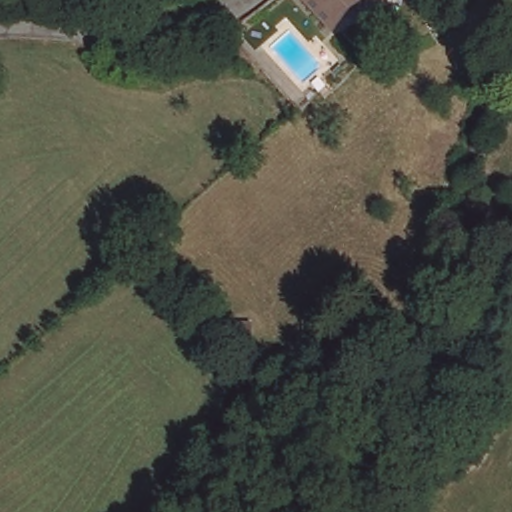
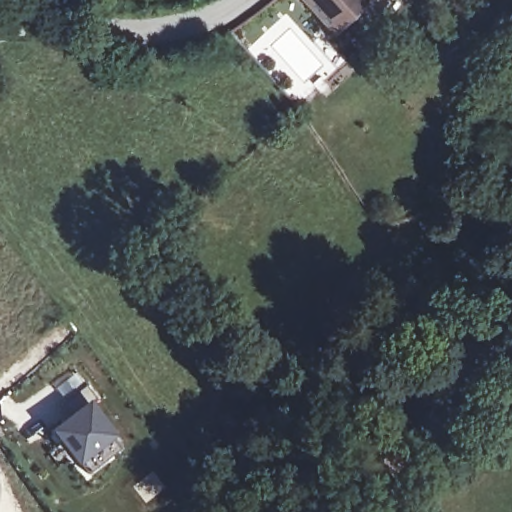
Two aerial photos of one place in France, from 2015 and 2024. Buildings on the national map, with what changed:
unchanged [(330,24),(308,0),(356,0),(330,24)]
new [(87,472),(76,461),(49,428),(70,413),(62,402),(85,385),(96,397),(90,402),(112,432),(111,434),(118,447),(87,472)]

